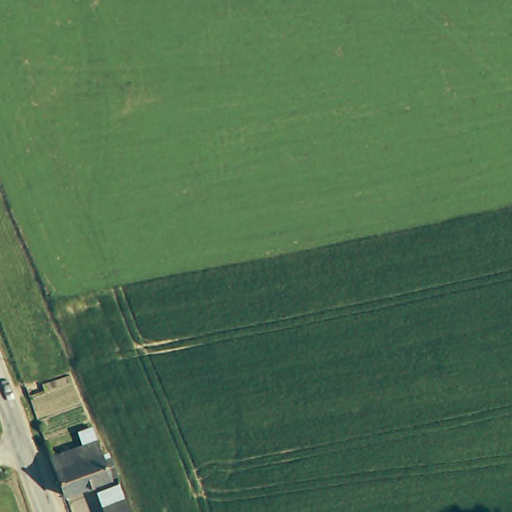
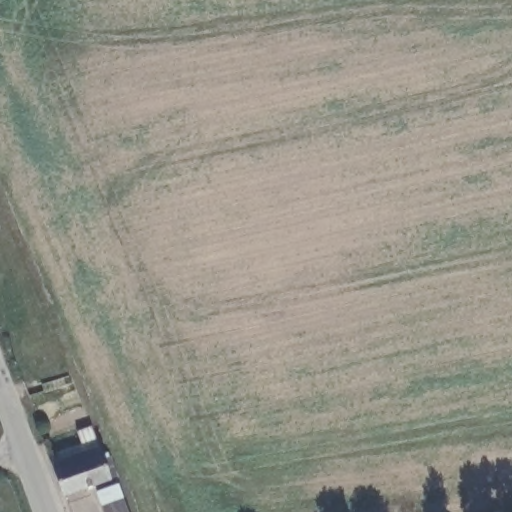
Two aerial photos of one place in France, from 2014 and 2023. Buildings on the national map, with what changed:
unchanged [(65,495),(53,457),(88,444),(81,428),(93,424),(99,440),(111,477),(65,495)]
unchanged [(129,512),(104,512),(103,510),(110,507),(107,496),(121,490),(129,512)]

